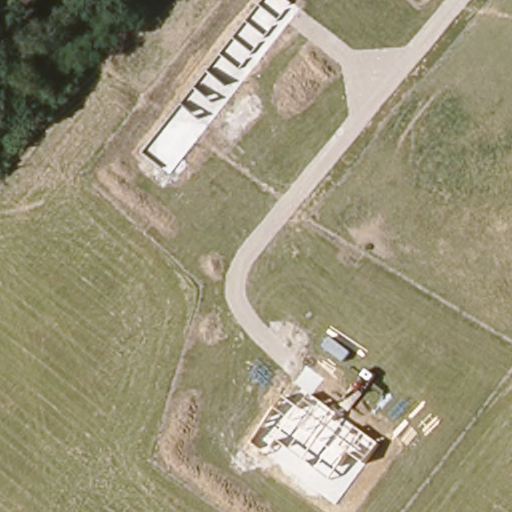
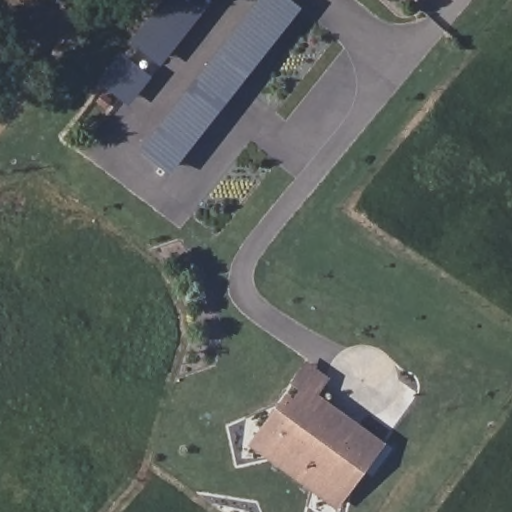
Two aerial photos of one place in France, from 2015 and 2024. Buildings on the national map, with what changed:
new [(161,0),(211,0),(212,1),(161,65),(129,40),(161,0)]
new [(293,0),(303,8),(171,175),(140,149),(257,0),(293,0)]
new [(96,80),(120,51),(151,76),(128,105),(96,80)]
new [(337,509),(248,445),(287,391),(294,396),(299,389),(291,383),(306,361),(330,379),(319,394),(386,443),(337,509)]

